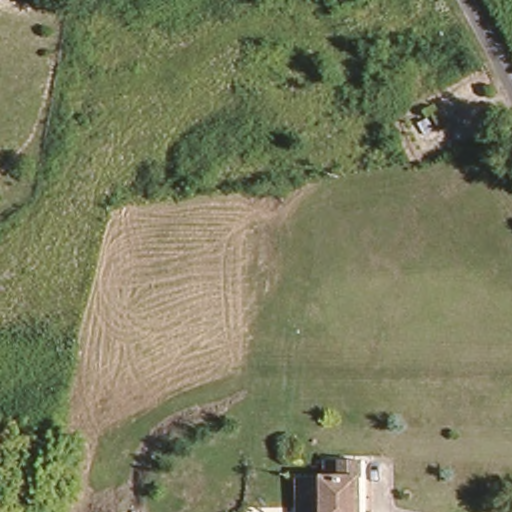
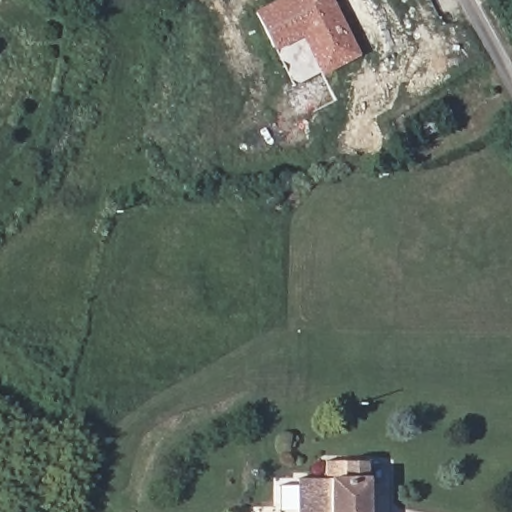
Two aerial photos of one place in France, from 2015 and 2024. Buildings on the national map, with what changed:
new [(256,13),(281,0),(329,0),(356,54),(293,87),(256,13)]
unchanged [(301,512),(302,485),(329,485),(329,467),(369,467),(369,512),(301,512)]

